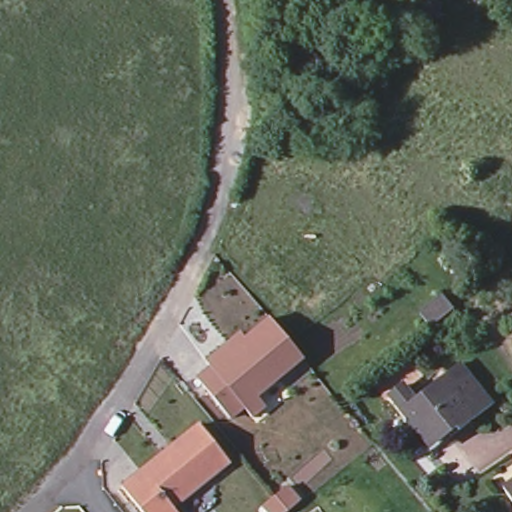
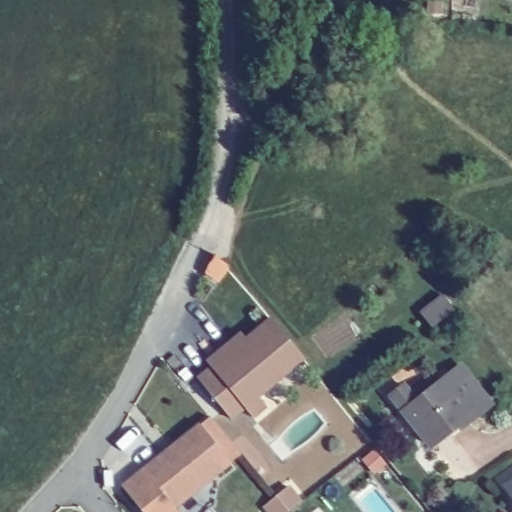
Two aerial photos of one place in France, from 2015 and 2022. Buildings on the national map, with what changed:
unchanged [(456,307),(433,325),(420,310),(443,291),(456,307)]
unchanged [(241,407),(228,418),(195,379),(208,367),(204,362),(238,333),(243,339),(268,318),(301,358),(255,396),(263,406),(250,417),(241,407)]
unchanged [(426,445),(398,411),(387,397),(402,385),(413,399),(439,377),(472,416),(455,430),(430,450),(426,445)]
unchanged [(177,512),(137,512),(122,493),(164,460),(171,455),(200,431),(230,469),(177,512)]
unchanged [(512,498),(505,488),(512,483),(512,498)]

